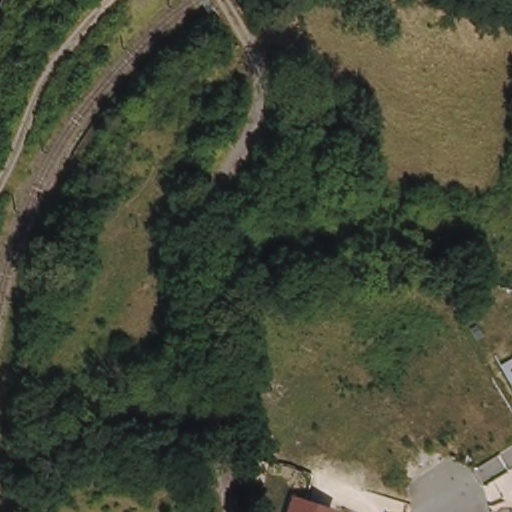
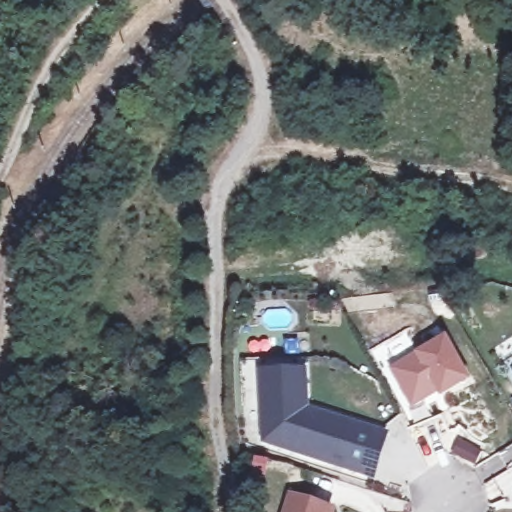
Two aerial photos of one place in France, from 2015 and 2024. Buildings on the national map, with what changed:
new [(440,394),(413,409),(391,370),(417,355),(447,338),(471,381),(442,398),(440,394)]
new [(293,410),(303,413),(305,408),(382,432),(370,474),(261,440),(260,388),(258,373),(293,371),(294,386),(295,404),(293,410)]
unchanged [(289,512),(293,498),(335,510),(334,512),(289,512)]

